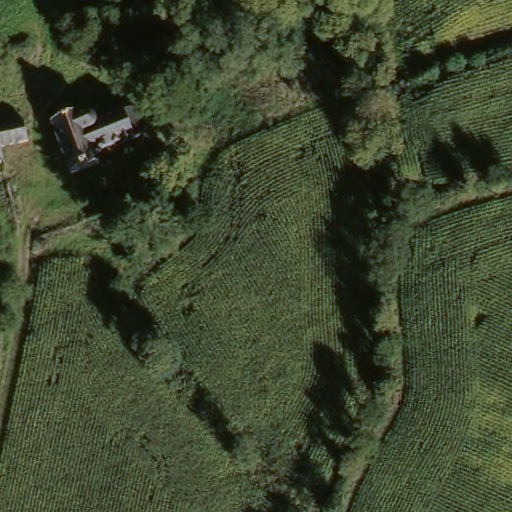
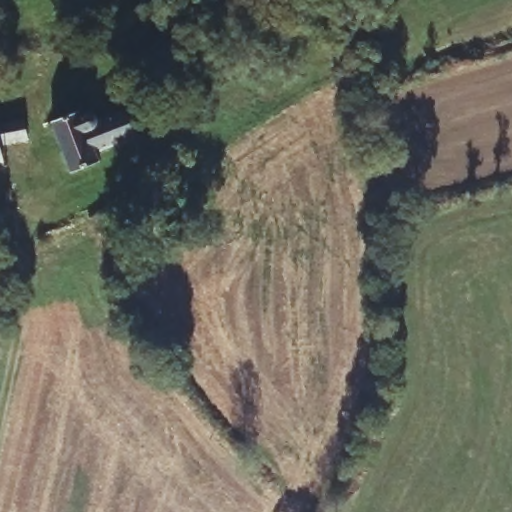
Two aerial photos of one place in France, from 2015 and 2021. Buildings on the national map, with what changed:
unchanged [(86,124),(118,118),(119,123),(141,121),(146,148),(132,152),(126,154),(95,159),(95,169),(65,175),(56,122),(83,115),(86,124)]
unchanged [(24,130),(28,144),(0,152),(0,128),(23,121),(24,130)]

